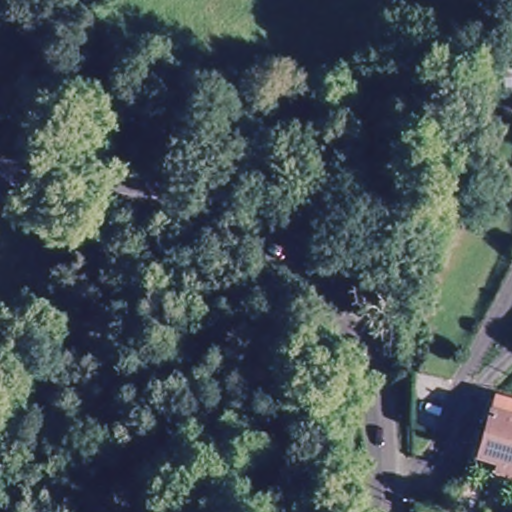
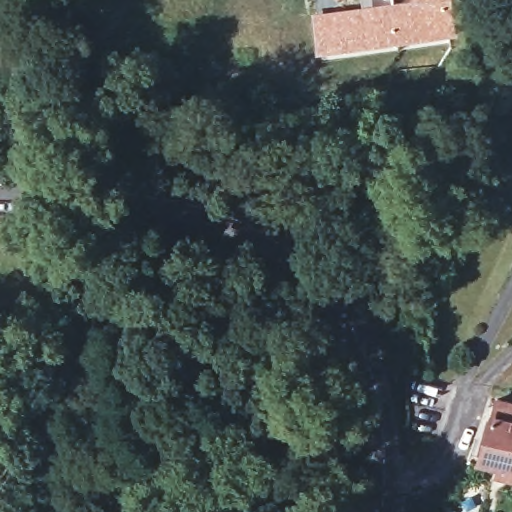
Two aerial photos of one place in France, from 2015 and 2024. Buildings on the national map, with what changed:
new [(362,4),(361,0),(453,0),(456,37),(316,51),(311,12),(362,4)]
unchanged [(495,475),(497,468),(478,463),(495,402),(512,407),(512,479),(495,475)]

